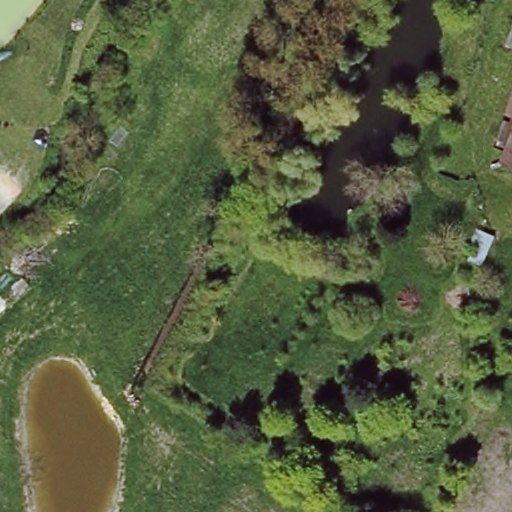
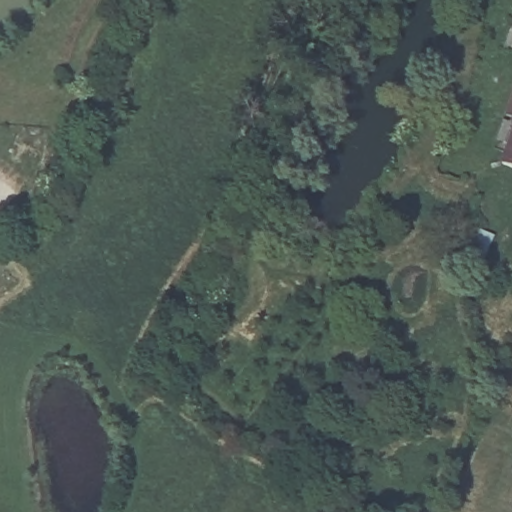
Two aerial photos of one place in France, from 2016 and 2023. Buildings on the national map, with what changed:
unchanged [(512,108),(506,104),(512,89),(512,108)]
unchanged [(512,127),(512,153),(503,149),(512,127)]

